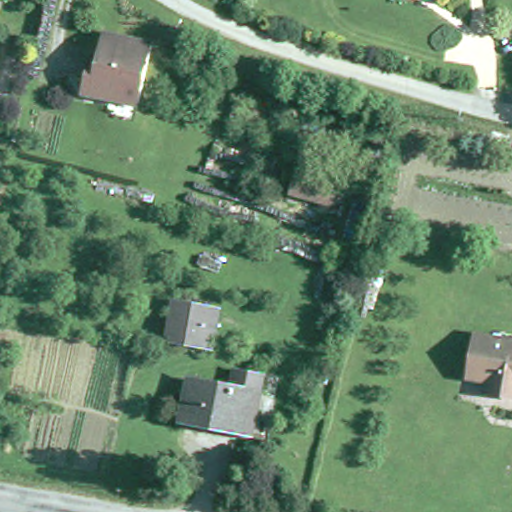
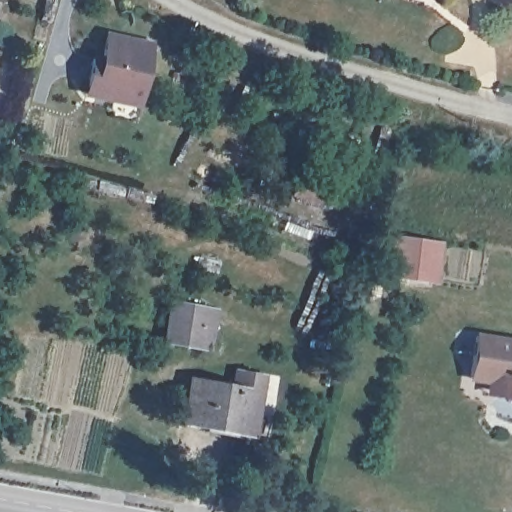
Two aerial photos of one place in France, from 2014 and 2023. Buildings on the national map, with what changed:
unchanged [(80,88),(88,54),(96,56),(101,31),(144,41),(131,100),(80,88)]
unchanged [(291,194),(298,171),(341,183),(335,205),(291,194)]
new [(433,282),(388,277),(397,235),(442,241),(433,282)]
unchanged [(159,341),(166,303),(211,311),(204,349),(159,341)]
unchanged [(484,382),(464,378),(471,337),(512,343),(512,399),(493,396),(483,394),(484,382)]
unchanged [(208,432),(209,425),(184,421),(192,381),(234,390),(236,373),(264,378),(260,396),(253,434),(251,433),(250,440),(208,432)]

